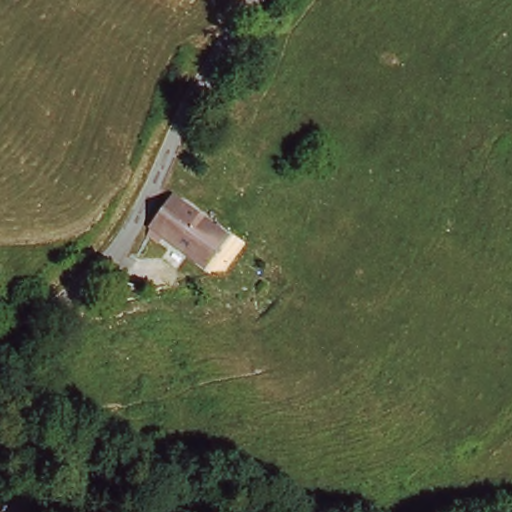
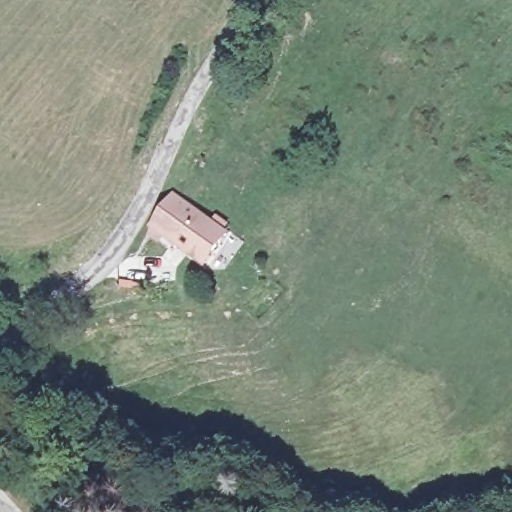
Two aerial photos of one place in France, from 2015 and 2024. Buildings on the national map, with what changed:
unchanged [(202,259),(152,219),(173,194),(223,235),(202,259)]

